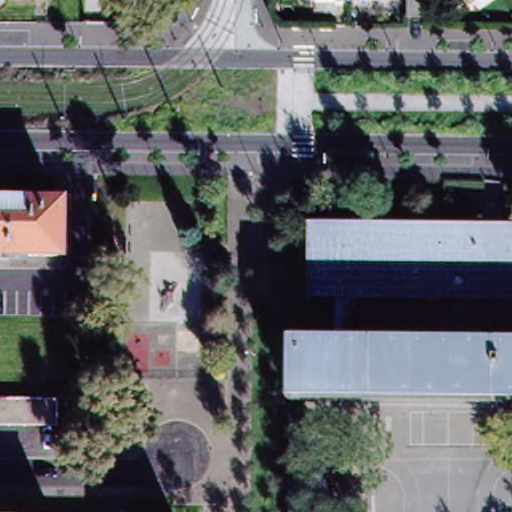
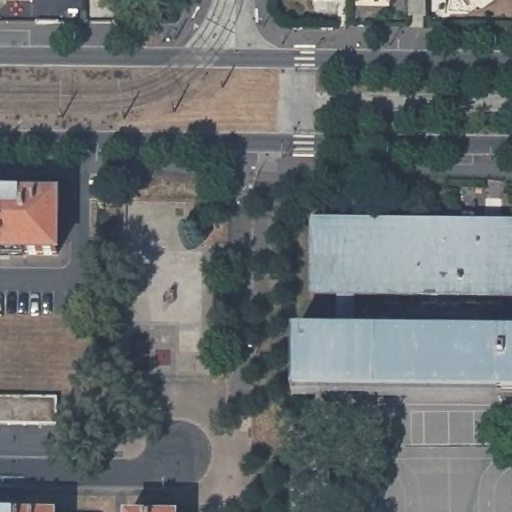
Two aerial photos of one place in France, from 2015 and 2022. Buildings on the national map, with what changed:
unchanged [(400,13),(400,0),(419,0),(419,13),(400,13)]
unchanged [(58,200),(57,257),(0,256),(0,199),(58,200)]
unchanged [(295,337),(335,338),(336,298),(313,298),(314,225),(512,228),(512,300),(353,298),(352,338),(512,339),(512,397),(295,394),(295,337)]
unchanged [(58,399),(57,427),(0,426),(0,399),(58,399)]
unchanged [(329,437),(328,512),(291,512),(291,489),(292,461),(292,439),(292,436),(329,437)]

